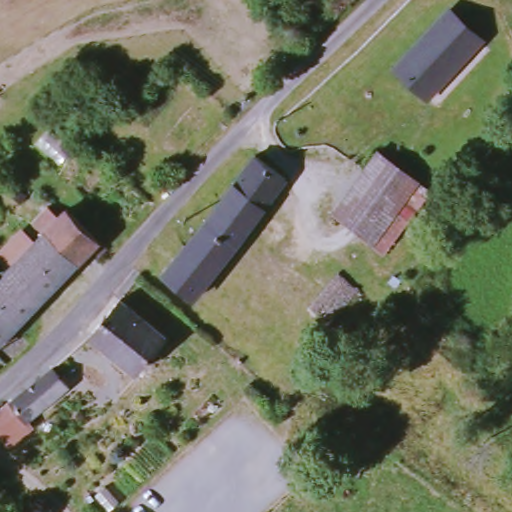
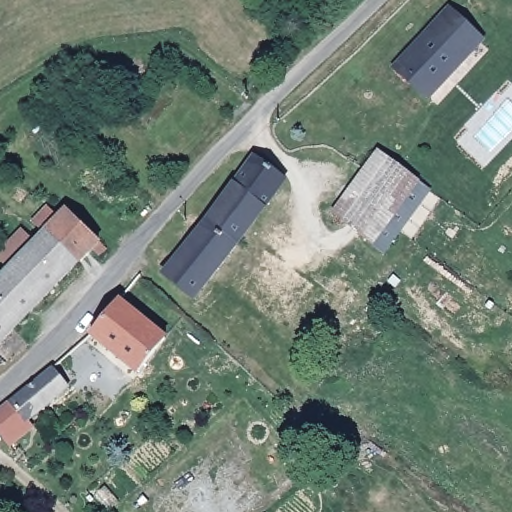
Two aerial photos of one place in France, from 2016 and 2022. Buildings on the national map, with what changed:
unchanged [(417,81),(402,67),(453,10),(484,38),(443,84),(432,95),(417,81)]
unchanged [(377,151),(433,185),(390,251),(337,216),(377,151)]
unchanged [(241,249),(207,219),(261,156),(292,185),(241,249)]
unchanged [(0,291),(47,240),(36,230),(50,214),(62,225),(70,216),(105,245),(0,354),(0,291)]
unchanged [(196,302),(163,271),(207,219),(241,249),(196,302)]
unchanged [(124,298),(165,340),(130,372),(90,330),(124,298)]
unchanged [(70,385),(32,421),(39,428),(17,449),(0,431),(0,415),(53,366),(70,385)]

